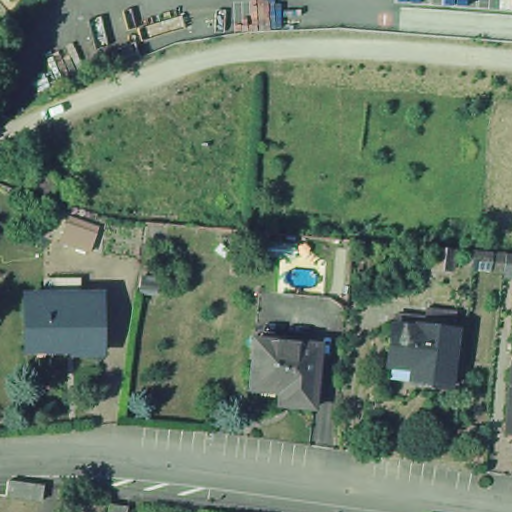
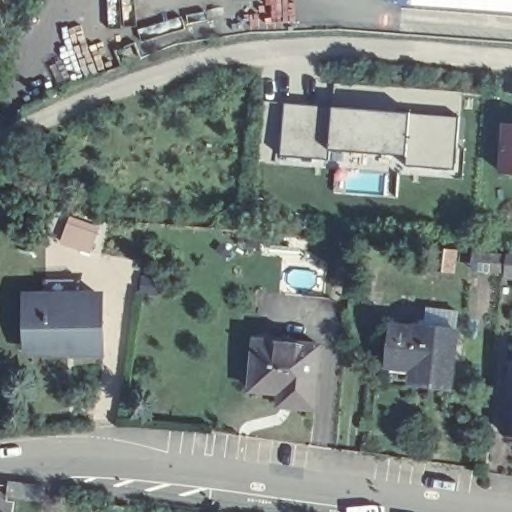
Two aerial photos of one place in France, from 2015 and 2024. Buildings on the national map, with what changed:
new [(407,0),(512,0),(512,13),(407,7),(407,0)]
new [(458,116),(455,170),(408,165),(409,157),(334,151),(334,160),(280,155),(287,103),(458,116)]
new [(512,173),(497,172),(501,123),(512,124),(512,173)]
unchanged [(90,254),(59,242),(66,216),(99,227),(90,254)]
unchanged [(472,253),(500,256),(505,256),(512,257),(512,280),(503,279),(504,273),(471,270),(472,253)]
unchanged [(97,358),(67,358),(21,358),(19,298),(97,297),(97,358)]
unchanged [(408,391),(410,376),(384,373),(390,327),(422,331),(415,391),(408,391)]
unchanged [(422,331),(422,328),(459,332),(452,395),(415,391),(422,331)]
unchanged [(245,392),(249,341),(277,344),(269,394),(245,392)]
unchanged [(274,394),(269,394),(277,344),(314,347),(310,409),(287,407),(273,406),(274,394)]
unchanged [(505,371),(512,372),(512,445),(497,443),(505,371)]
unchanged [(12,480),(46,483),(44,499),(10,495),(12,480)]

